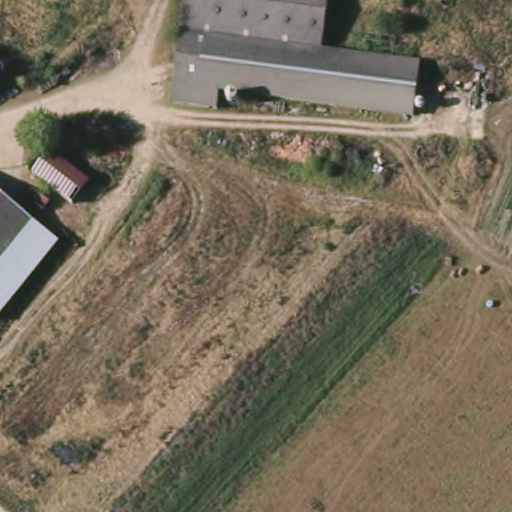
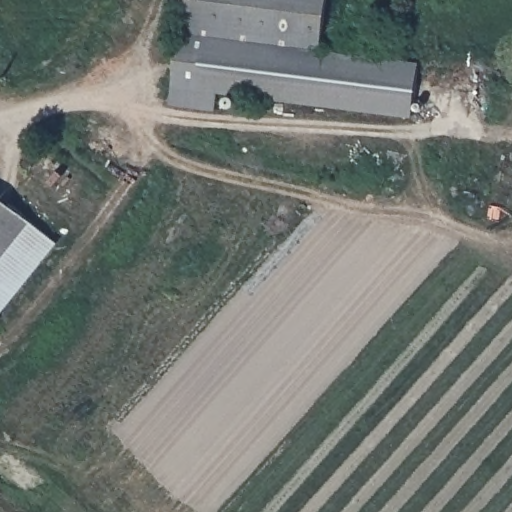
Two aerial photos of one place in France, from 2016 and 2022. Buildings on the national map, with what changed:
unchanged [(418,63),(412,117),(225,95),(174,88),(183,0),(328,0),(324,50),(418,63)]
unchanged [(86,186),(67,209),(29,176),(45,154),(86,186)]
unchanged [(0,250),(0,200),(24,219),(0,250)]
unchanged [(24,219),(57,242),(0,305),(0,250),(24,219)]

